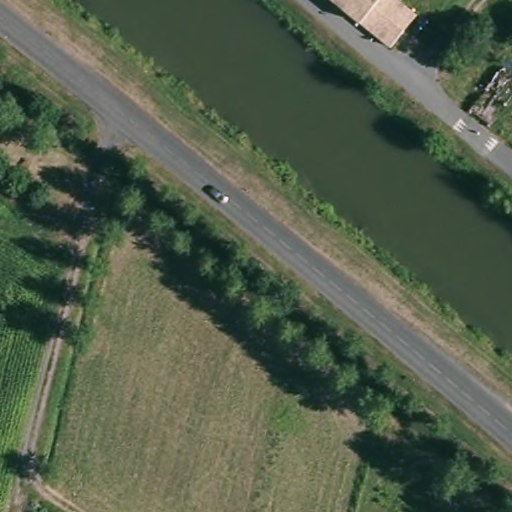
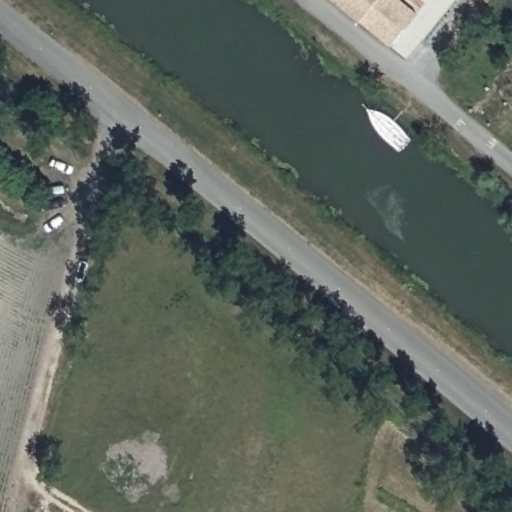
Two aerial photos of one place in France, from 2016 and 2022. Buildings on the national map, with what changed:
unchanged [(408,28),(395,44),(392,41),(339,0),(404,0),(420,12),(408,28)]
unchanged [(472,106),(512,54),(512,98),(493,123),(472,106)]

